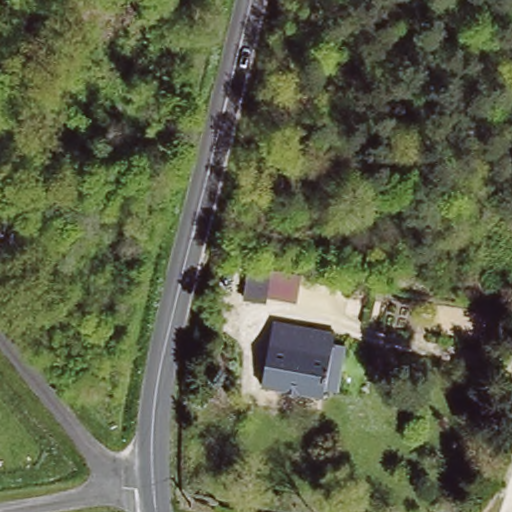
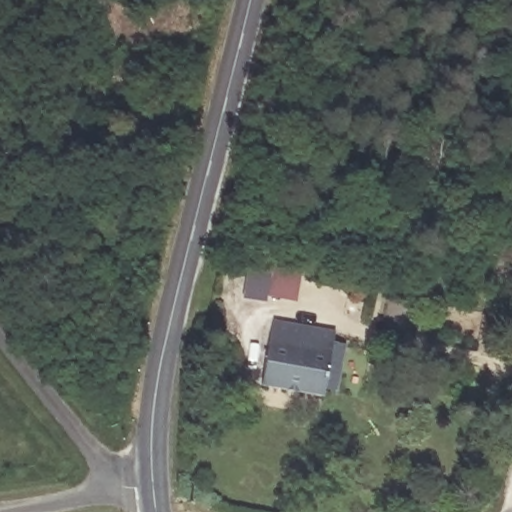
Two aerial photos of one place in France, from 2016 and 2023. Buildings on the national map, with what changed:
unchanged [(249,266),(301,274),(298,302),(269,297),(267,303),(243,300),(249,266)]
unchanged [(340,382),(328,380),(326,392),(266,383),(279,318),(300,322),(324,325),(348,328),(340,382)]

